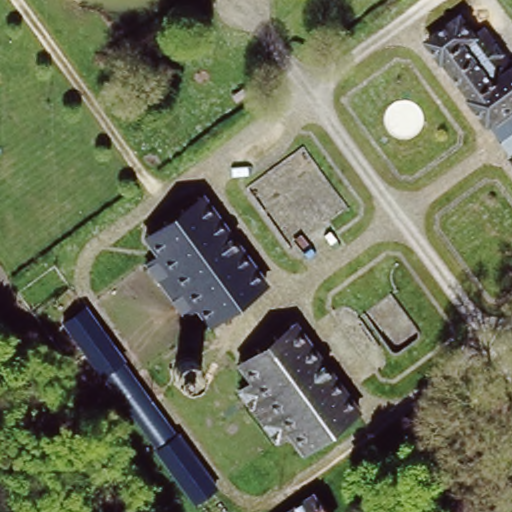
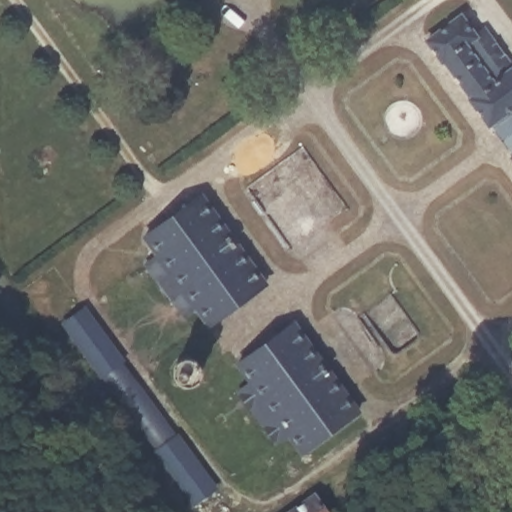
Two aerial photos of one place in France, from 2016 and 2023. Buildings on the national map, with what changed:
unchanged [(463,13),(476,32),(482,29),(508,66),(512,63),(512,158),(428,38),(463,13)]
unchanged [(272,287),(215,328),(202,310),(188,320),(146,263),(160,254),(146,235),(202,193),(272,287)]
unchanged [(221,491),(195,511),(172,478),(59,322),(86,303),(221,491)]
unchanged [(358,417),(301,457),(289,440),(275,450),(234,392),(247,383),(235,367),(293,326),(358,417)]
unchanged [(184,353),(190,355),(196,357),(200,362),(202,367),(203,373),(203,378),(200,384),(196,388),(191,392),(185,392),(179,392),(174,391),(169,387),(166,382),(164,377),(164,371),(166,365),(169,360),(173,356),(178,354),(184,353)]
unchanged [(318,497),(327,505),(331,512),(295,512),(318,497)]

